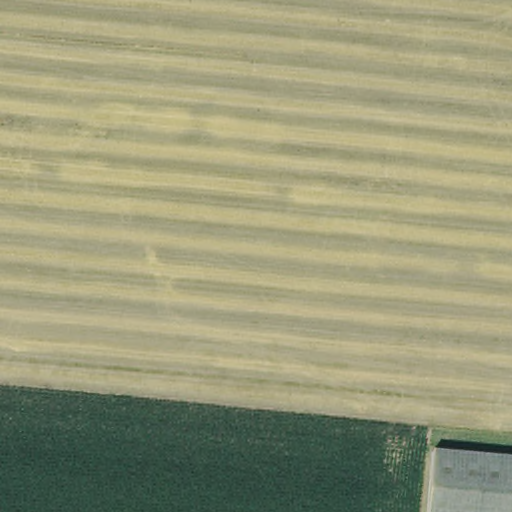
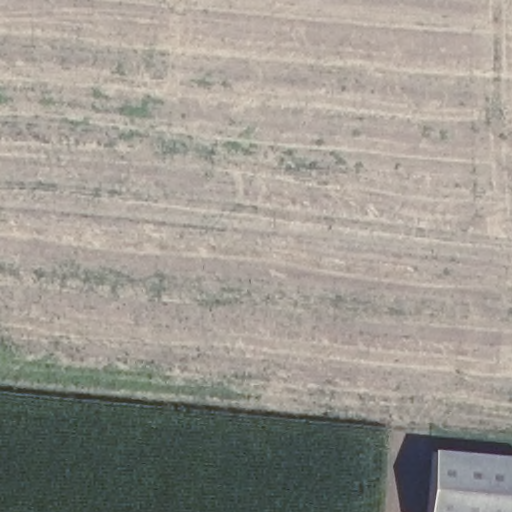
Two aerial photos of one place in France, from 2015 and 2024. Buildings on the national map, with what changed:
unchanged [(512,456),(512,512),(421,512),(427,447),(512,456)]

